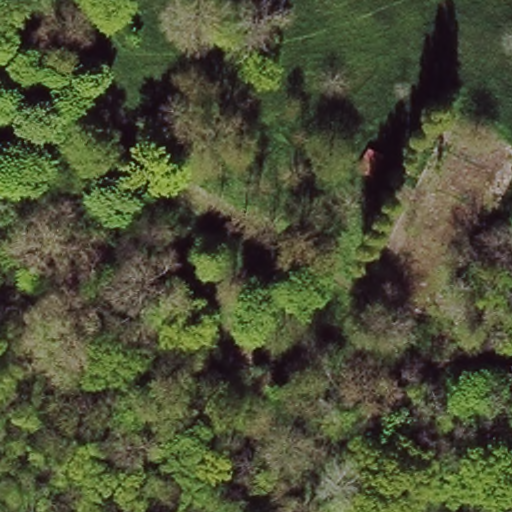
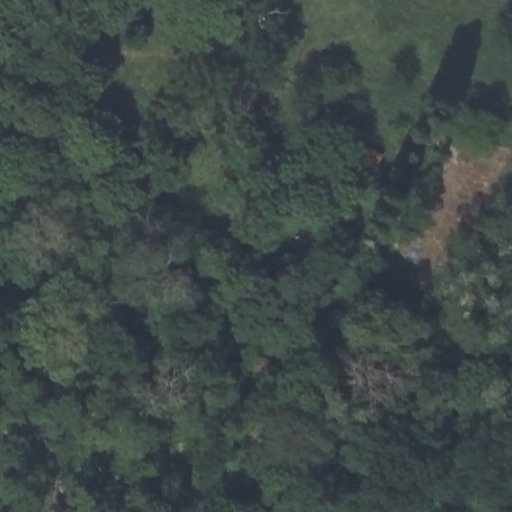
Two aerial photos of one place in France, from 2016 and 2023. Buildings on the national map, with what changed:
[]

